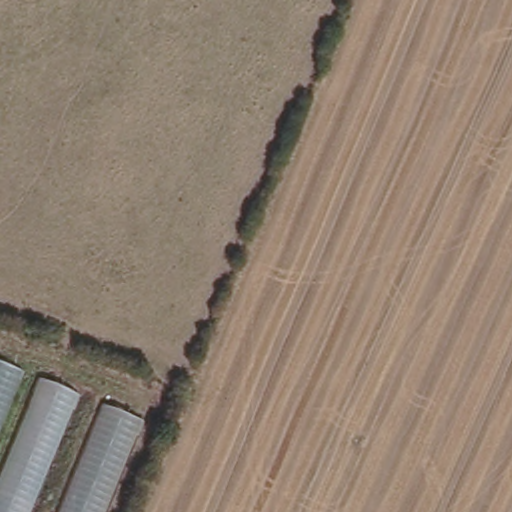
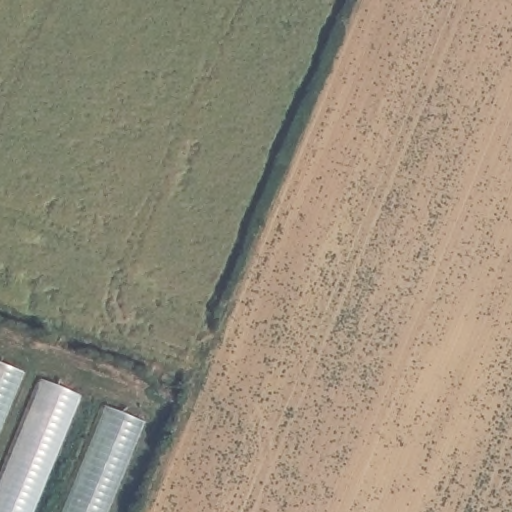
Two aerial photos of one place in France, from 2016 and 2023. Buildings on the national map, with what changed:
unchanged [(0,420),(0,364),(20,372),(0,420)]
unchanged [(81,392),(33,512),(0,512),(0,464),(37,375),(81,392)]
unchanged [(100,402),(145,420),(105,512),(55,512),(100,402)]

